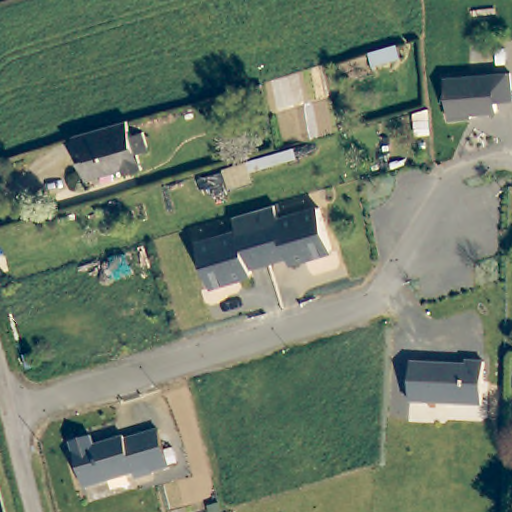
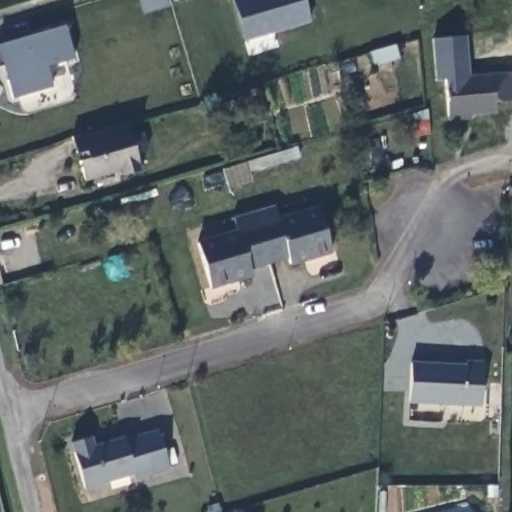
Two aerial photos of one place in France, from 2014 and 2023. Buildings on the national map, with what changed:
new [(310,19),(245,38),(235,0),(304,0),(310,19)]
new [(63,24),(72,57),(45,65),(51,85),(11,97),(5,79),(8,78),(4,63),(0,65),(0,42),(63,24)]
new [(444,78),(435,79),(431,39),(466,34),(470,75),(444,78)]
unchanged [(507,99),(491,101),(491,111),(468,113),(468,117),(447,119),(444,78),(505,72),(507,99)]
unchanged [(140,167),(130,169),(130,164),(84,179),(79,160),(86,158),(85,148),(76,150),(70,131),(125,115),(129,131),(140,128),(146,147),(136,151),(140,167)]
unchanged [(230,222),(235,221),(271,210),(276,223),(315,212),(331,255),(290,267),(288,260),(250,271),(252,279),(210,291),(195,247),(235,236),(230,222)]
unchanged [(480,406),(416,402),(411,402),(412,363),(417,363),(465,366),(465,362),(482,363),(480,406)]
unchanged [(135,477),(134,472),(89,485),(76,440),(92,435),(96,448),(105,445),(104,442),(125,436),(125,439),(141,434),(158,429),(169,466),(152,470),(152,472),(135,477)]

